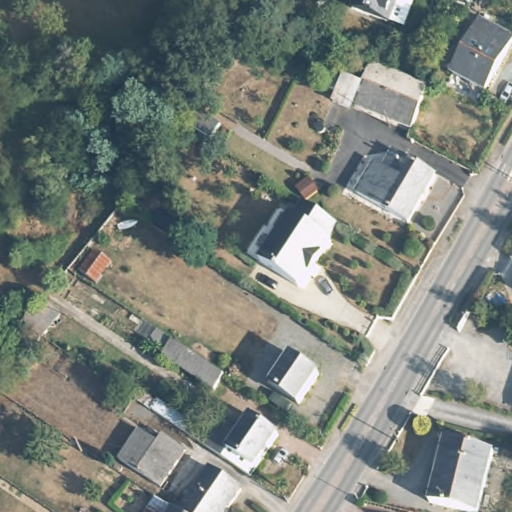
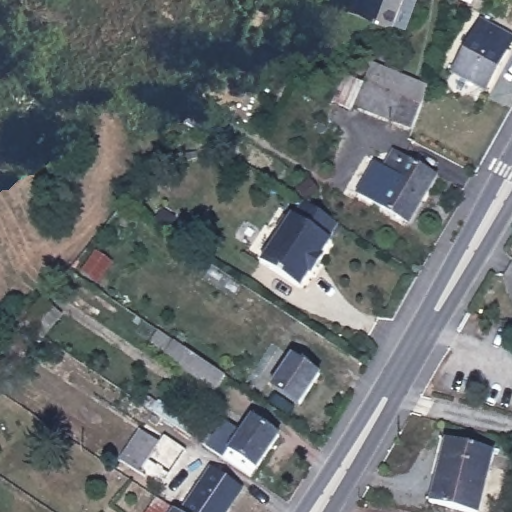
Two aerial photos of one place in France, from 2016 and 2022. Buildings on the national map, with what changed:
unchanged [(402,21),(387,16),(349,2),(350,0),(410,0),(402,21)]
unchanged [(452,70),(481,16),(512,34),(512,41),(483,89),(452,70)]
unchanged [(379,95),(385,82),(388,75),(415,88),(426,91),(417,110),(406,132),(347,108),(359,86),(363,87),(379,95)]
unchanged [(217,124),(207,139),(175,119),(186,104),(217,124)]
unchanged [(356,190),(374,161),(382,166),(392,149),(435,175),(408,221),(356,190)]
unchanged [(340,224),(333,240),(324,254),(326,255),(314,273),(313,272),(303,286),(265,261),(282,235),(280,229),(288,216),(293,217),(297,216),(307,201),(340,224)]
unchanged [(153,225),(162,212),(169,217),(171,225),(165,233),(153,225)]
unchanged [(31,353),(9,336),(42,296),(64,315),(31,353)]
unchanged [(214,392),(205,387),(164,358),(175,344),(226,377),(214,392)]
unchanged [(299,402),(271,385),(293,353),(320,371),(299,402)]
unchanged [(225,418),(241,430),(252,413),(280,433),(254,475),(207,445),(225,418)]
unchanged [(123,457),(143,427),(163,440),(167,435),(190,450),(165,486),(123,457)]
unchanged [(480,512),(434,500),(441,470),(434,468),(443,435),(497,448),(480,512)]
unchanged [(188,512),(185,510),(215,466),(246,486),(229,512),(188,512)]
unchanged [(152,512),(161,497),(183,512),(152,512)]

